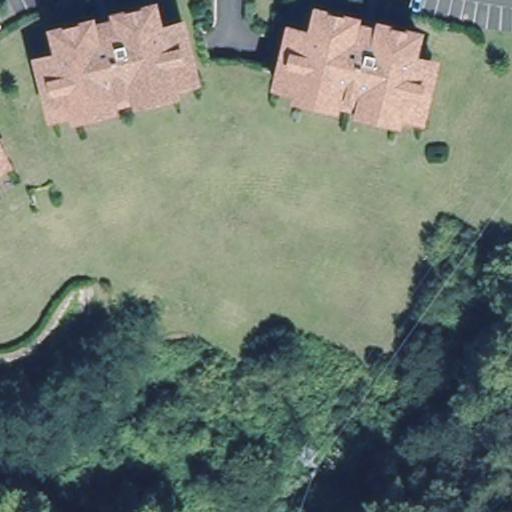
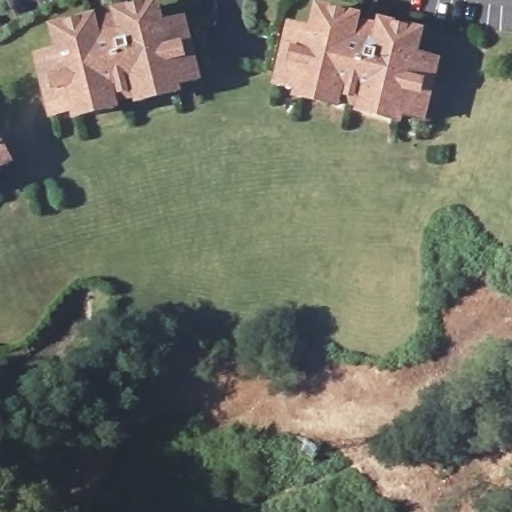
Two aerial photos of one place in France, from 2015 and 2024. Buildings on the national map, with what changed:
unchanged [(200,84),(178,89),(180,95),(142,105),(141,99),(127,101),(116,105),(117,110),(80,120),(78,114),(56,120),(52,107),(52,106),(45,76),(42,64),(52,60),(64,58),(60,42),(59,36),(96,27),(97,33),(122,26),(121,21),(159,11),(160,17),(164,33),(175,30),(186,27),(189,40),(197,70),(197,72),(200,84)]
unchanged [(398,112),(397,119),(360,110),(361,104),(348,100),(336,98),(335,104),(297,95),(298,89),(276,84),(279,70),(285,45),(286,40),(289,27),(301,30),(312,32),(315,17),(317,11),(354,20),(352,25),(360,27),(378,31),(380,26),(417,35),(416,40),(412,56),(423,59),(434,61),(431,74),(424,105),(421,118),(398,112)]
unchanged [(0,161),(0,145),(6,157),(0,161)]

